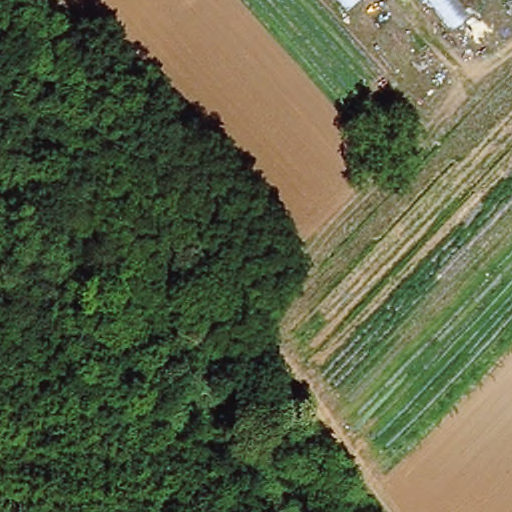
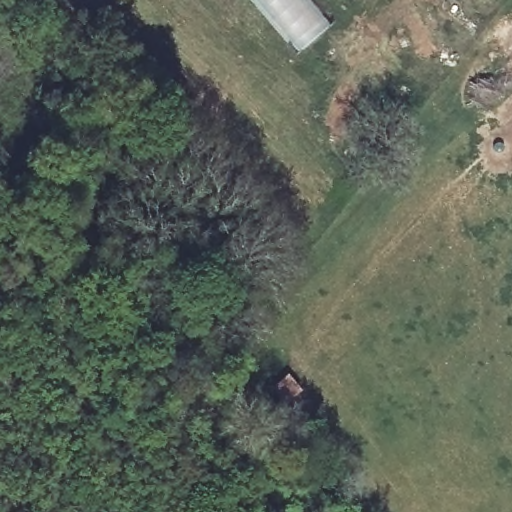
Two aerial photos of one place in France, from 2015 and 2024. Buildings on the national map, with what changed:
new [(331,25),(297,53),(251,0),(311,0),(331,25)]

